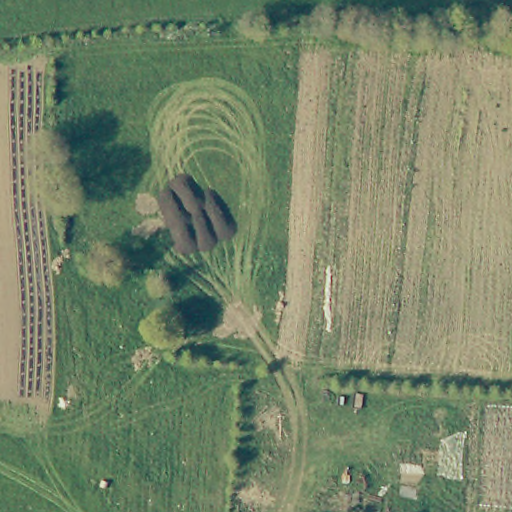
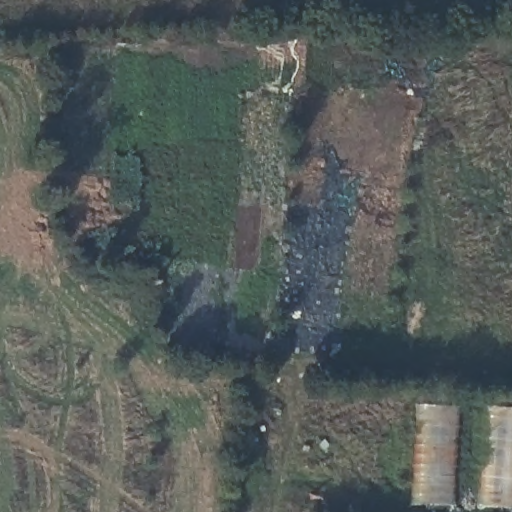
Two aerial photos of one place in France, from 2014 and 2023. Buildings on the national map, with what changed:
new [(455,505),(411,505),(416,404),(458,405),(455,505)]
new [(485,407),(512,409),(512,509),(476,505),(485,407)]

